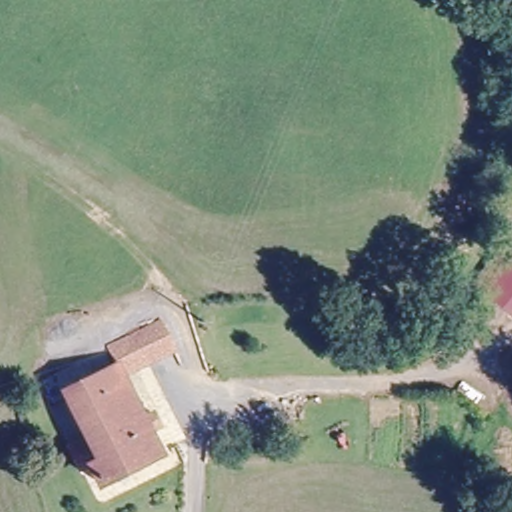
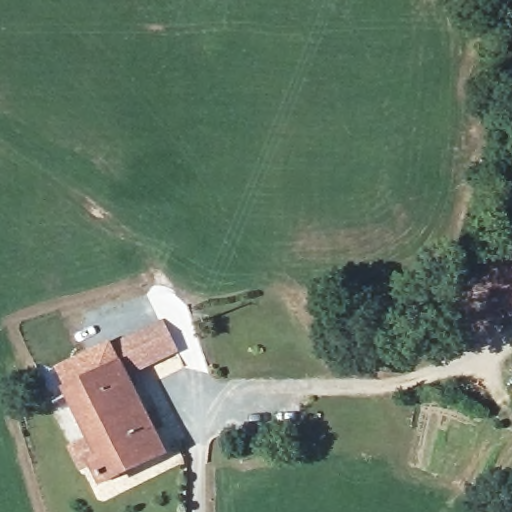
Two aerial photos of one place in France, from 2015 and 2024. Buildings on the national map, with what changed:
unchanged [(512,240),(512,319),(473,288),(512,240)]
unchanged [(106,347),(162,321),(179,348),(127,377),(120,363),(114,366),(106,347)]
unchanged [(114,366),(120,363),(166,450),(102,483),(92,463),(102,458),(64,390),(114,366)]

